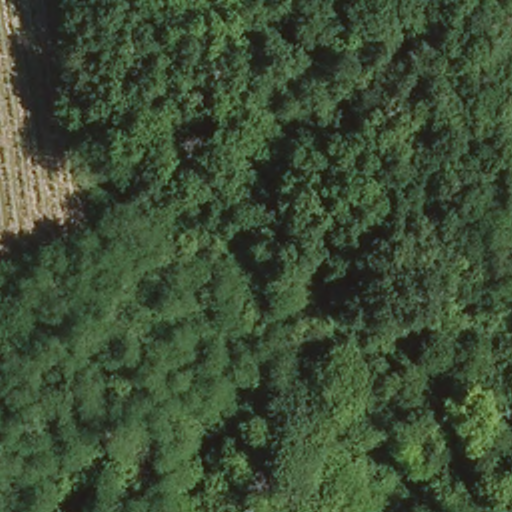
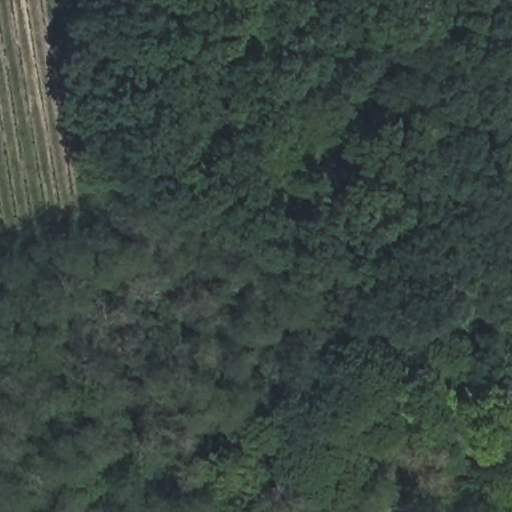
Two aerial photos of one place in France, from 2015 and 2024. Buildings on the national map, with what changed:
unchanged [(396,382),(379,383),(377,357),(395,355),(396,382)]
unchanged [(507,392),(475,398),(472,383),(505,378),(507,392)]

